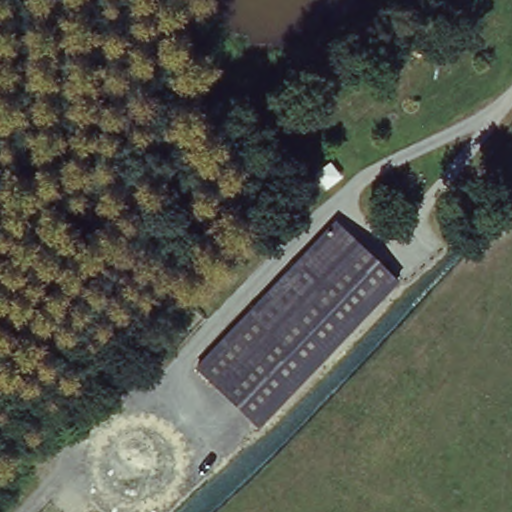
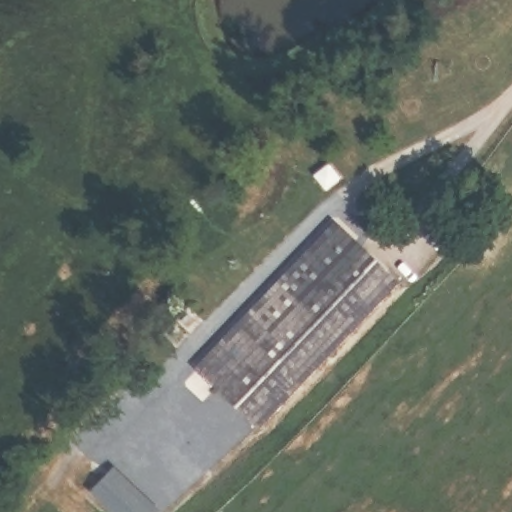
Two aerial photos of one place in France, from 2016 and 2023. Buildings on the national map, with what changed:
unchanged [(487,174),(508,154),(512,150),(512,183),(504,191),(487,174)]
unchanged [(336,219),(354,237),(287,307),(268,289),(336,219)]
unchanged [(287,307),(354,237),(397,280),(260,424),(197,362),(268,289),(287,307)]
new [(113,471),(155,512),(112,512),(91,493),(113,471)]

